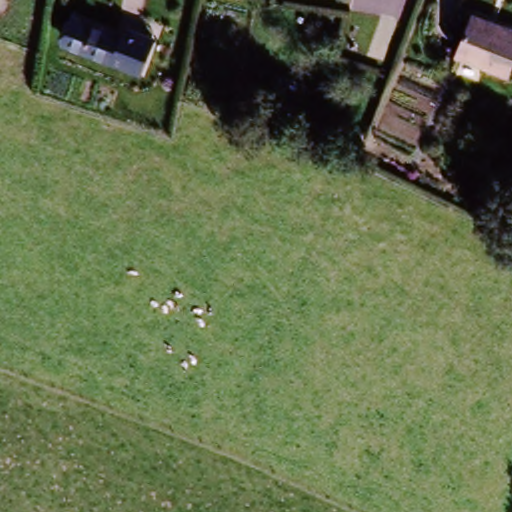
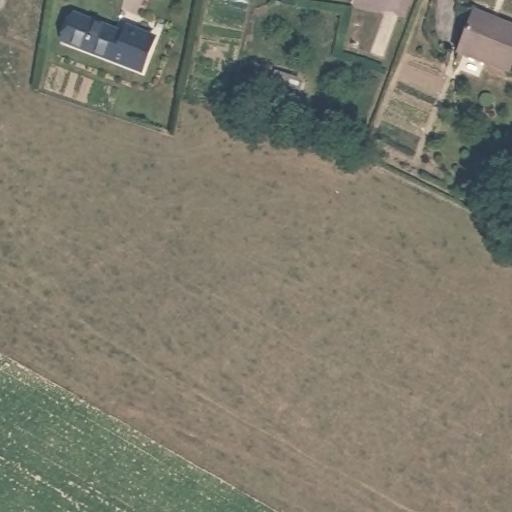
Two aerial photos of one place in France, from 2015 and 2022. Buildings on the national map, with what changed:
unchanged [(512,31),(512,63),(505,80),(452,58),(470,14),(512,31)]
unchanged [(56,50),(66,16),(118,35),(121,29),(154,41),(141,79),(56,50)]
unchanged [(287,117),(270,110),(273,100),(265,97),(276,69),(302,79),(287,117)]

